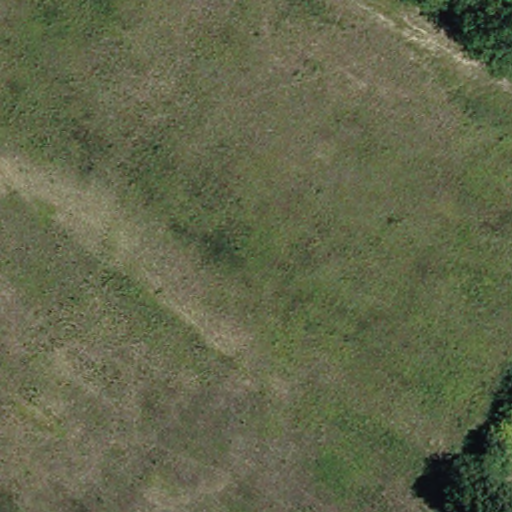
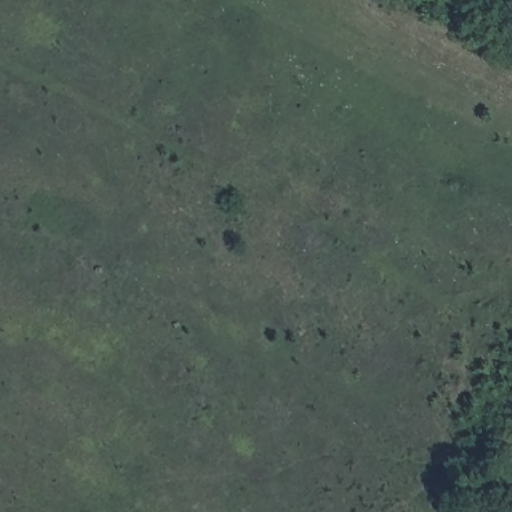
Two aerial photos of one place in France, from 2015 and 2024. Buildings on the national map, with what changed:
[]

